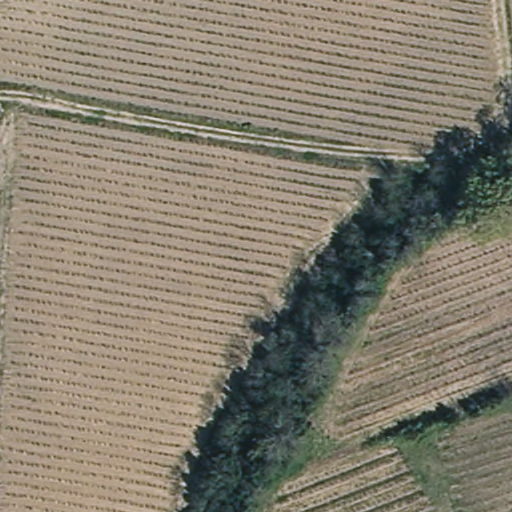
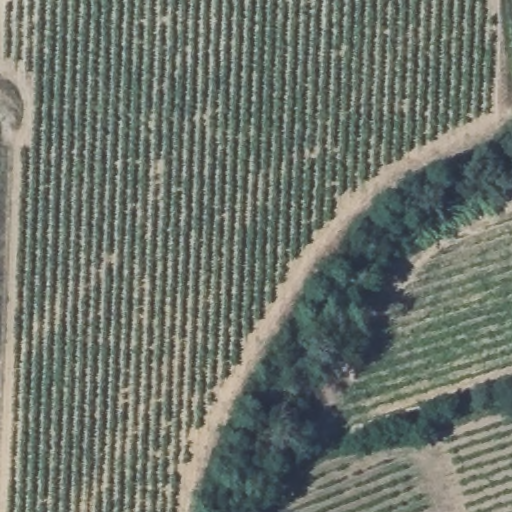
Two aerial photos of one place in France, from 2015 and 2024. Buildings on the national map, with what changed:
[]

